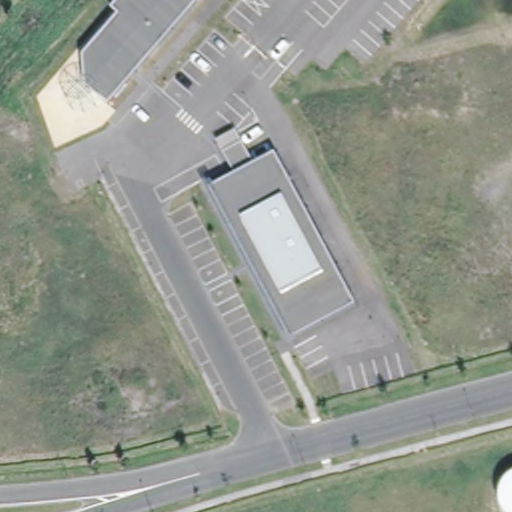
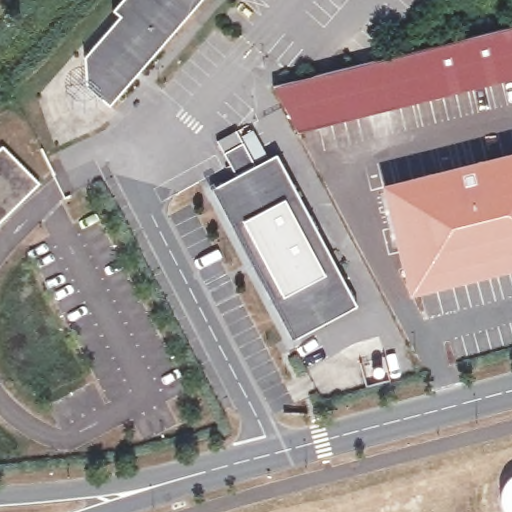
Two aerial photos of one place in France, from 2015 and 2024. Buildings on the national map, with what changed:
unchanged [(85,86),(82,57),(119,16),(111,10),(120,0),(200,0),(109,106),(85,86)]
new [(272,85),(512,24),(512,77),(298,131),(272,85)]
unchanged [(236,131),(255,164),(275,153),(357,306),(296,338),(300,344),(288,349),(204,186),(212,182),(215,186),(235,174),(216,141),(236,131)]
new [(10,149),(46,187),(0,232),(0,159),(10,149)]
new [(381,184),(512,151),(512,269),(408,294),(381,184)]

